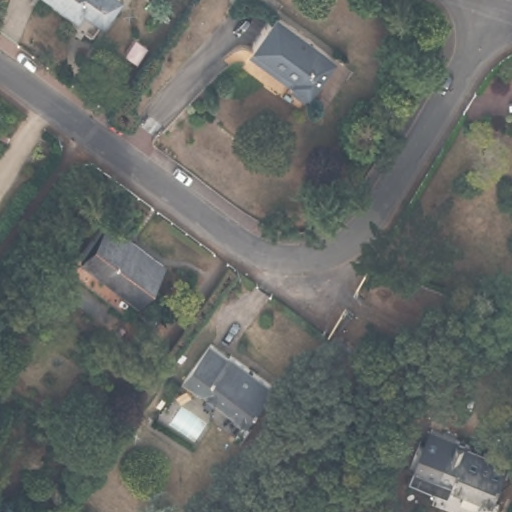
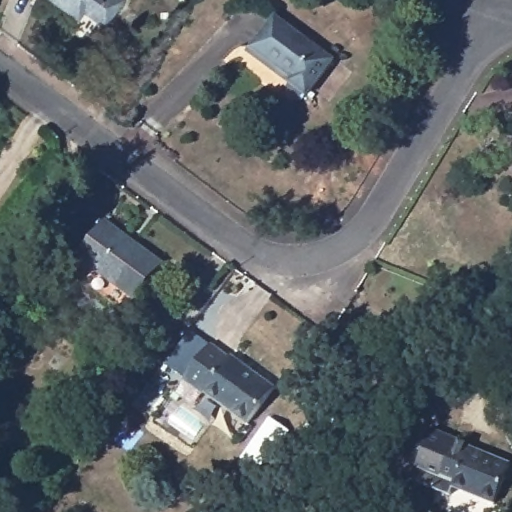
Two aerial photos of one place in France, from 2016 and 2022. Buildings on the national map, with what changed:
unchanged [(95,24),(77,10),(68,20),(40,0),(114,0),(95,24)]
unchanged [(332,61),(300,101),(282,87),(286,81),(245,51),(273,16),(332,61)]
unchanged [(175,264),(136,313),(78,268),(116,220),(175,264)]
unchanged [(227,354),(230,350),(274,382),(245,421),(204,391),(200,396),(180,382),(209,341),(227,354)]
unchanged [(477,450),(512,464),(512,470),(498,507),(451,488),(443,463),(452,435),(479,445),(477,450)]

